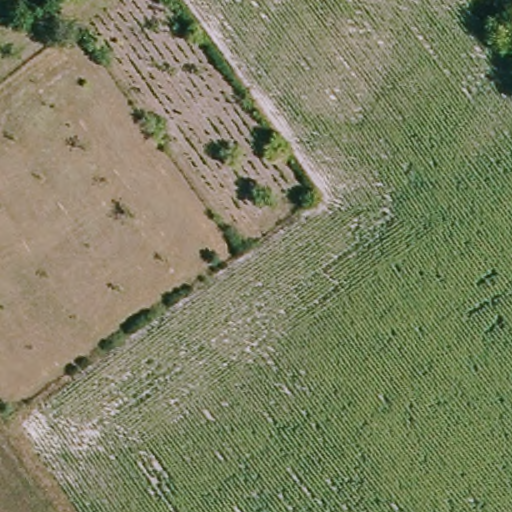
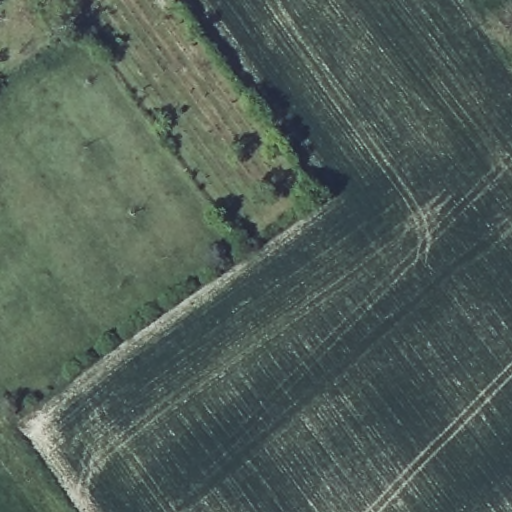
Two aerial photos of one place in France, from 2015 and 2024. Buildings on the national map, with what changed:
[]

